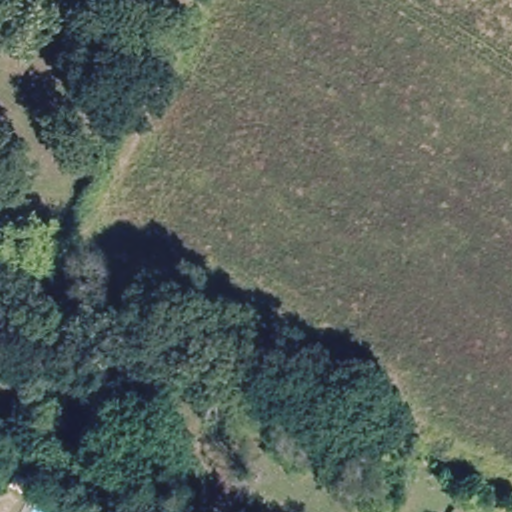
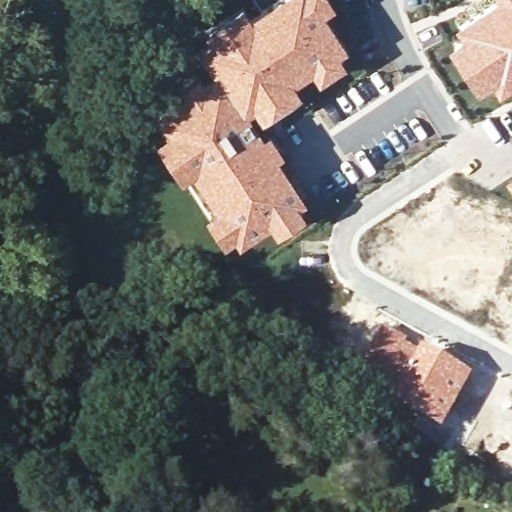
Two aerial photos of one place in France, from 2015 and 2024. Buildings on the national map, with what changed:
new [(195,165),(185,171),(163,136),(173,129),(163,113),(191,95),(185,85),(201,75),(207,84),(224,74),(207,47),(220,40),(213,29),(247,7),(254,18),(282,0),(333,0),(335,2),(324,9),(347,45),(338,51),(345,61),(324,74),(318,64),(292,80),(299,90),(266,111),(259,101),(246,109),(265,137),(270,134),(280,150),(275,153),(303,198),(295,203),(302,213),(279,228),(272,217),(241,237),(237,230),(226,237),(212,214),(223,207),(195,165)]
new [(471,36),(463,24),(500,0),(512,0),(512,80),(503,86),(496,75),(485,83),(459,44),(471,36)]
new [(382,329),(473,377),(441,434),(411,417),(357,380),(382,329)]

